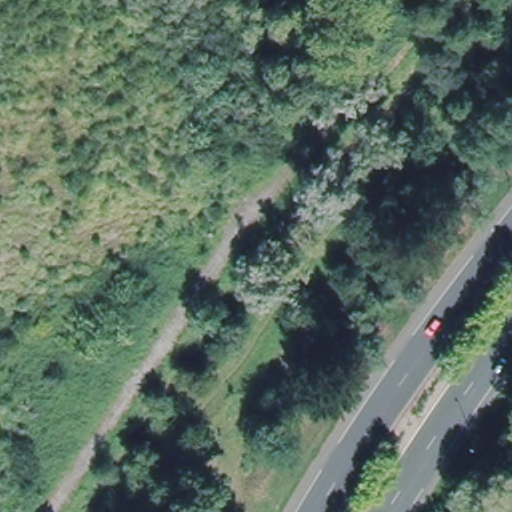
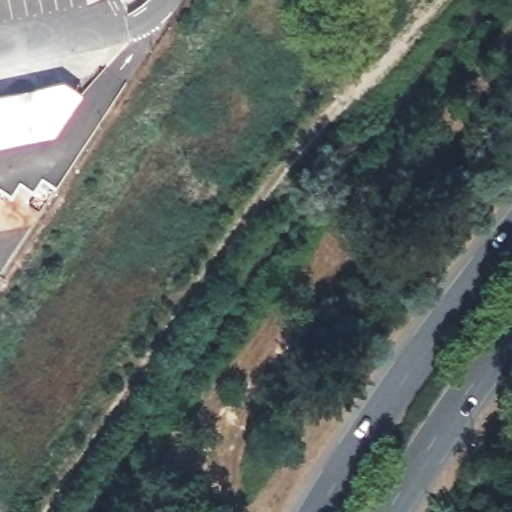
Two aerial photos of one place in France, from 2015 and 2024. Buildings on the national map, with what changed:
new [(80,92),(55,137),(0,148),(0,97),(64,82),(80,92)]

